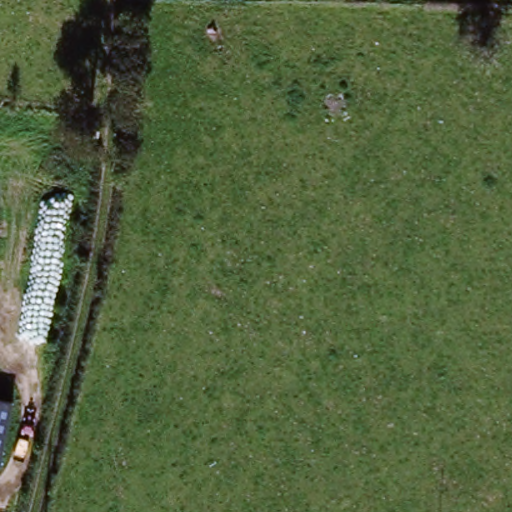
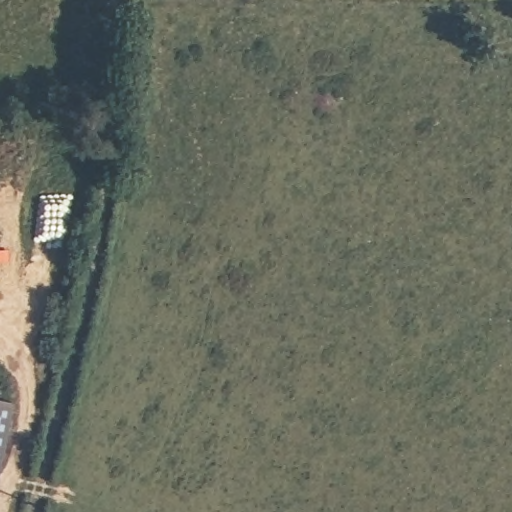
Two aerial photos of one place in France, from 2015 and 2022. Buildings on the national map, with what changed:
unchanged [(13,402),(0,470),(0,399),(13,402)]

